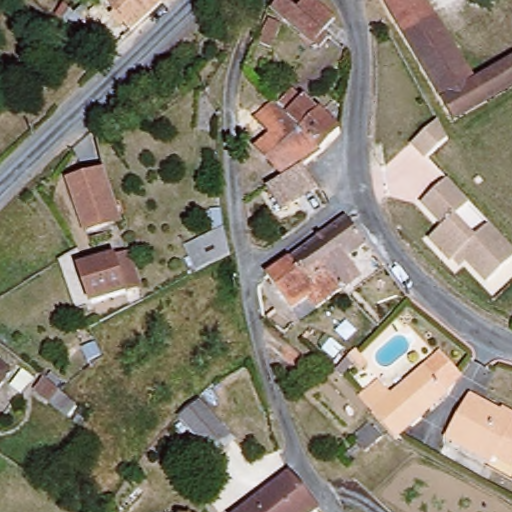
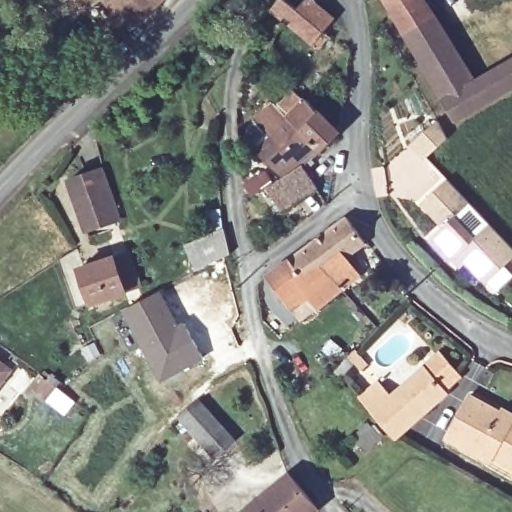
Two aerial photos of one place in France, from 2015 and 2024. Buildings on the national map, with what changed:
unchanged [(105,1),(106,0),(162,0),(130,29),(125,24),(121,27),(110,16),(115,12),(105,1)]
unchanged [(480,81),(502,69),(512,63),(512,90),(459,120),(447,101),(410,35),(397,14),(389,0),(429,0),(480,81)]
unchanged [(319,49),(277,14),(287,1),(302,14),(313,1),(339,25),(329,37),(335,41),(324,54),(319,49)]
unchanged [(89,12),(71,29),(56,15),(64,5),(74,14),(81,5),(89,12)]
unchanged [(286,30),(275,53),(264,49),(275,25),(286,30)]
unchanged [(345,132),(345,133),(344,133),(328,150),(326,152),(283,107),(300,90),(310,100),(311,99),(323,112),(324,112),(345,132)]
unchanged [(326,152),(308,166),(307,165),(289,175),(262,149),(277,135),(260,119),(278,102),(283,107),(326,152)]
unchanged [(449,140),(427,160),(409,142),(436,116),(449,140)]
unchanged [(322,187),(287,210),(271,187),(289,175),(307,165),(308,166),(322,187)]
unchanged [(100,170),(116,220),(86,231),(68,180),(100,170)]
unchanged [(471,200),(456,212),(476,234),(490,222),(512,246),(512,258),(487,284),(469,265),(455,265),(429,237),(440,225),(420,202),(447,177),(471,200)]
unchanged [(371,244),(351,259),(365,275),(347,288),(334,271),(315,283),(296,258),(351,217),(371,244)]
unchanged [(230,254),(209,263),(203,247),(214,242),(212,234),(224,229),(230,254)]
unchanged [(82,279),(79,268),(83,266),(114,256),(128,251),(140,287),(126,292),(91,303),(82,279)]
unchanged [(315,283),(334,271),(347,288),(304,320),(297,311),(296,311),(271,275),(296,258),(315,283)]
new [(161,290),(179,322),(184,320),(204,358),(160,383),(120,310),(161,290)]
unchanged [(298,325),(289,333),(269,318),(280,310),(298,325)]
unchanged [(100,355),(88,361),(81,349),(94,343),(100,355)]
unchanged [(400,437),(364,397),(383,381),(397,396),(429,366),(445,353),(464,376),(449,389),(452,392),(400,437)]
unchanged [(0,359),(15,370),(0,390),(0,359)]
unchanged [(51,381),(64,390),(54,401),(38,390),(48,378),(51,381)]
unchanged [(512,419),(512,424),(512,425),(512,462),(496,453),(491,463),(446,438),(469,395),(512,419)]
unchanged [(238,444),(219,460),(182,420),(202,402),(238,444)]
unchanged [(362,441),(365,439),(360,433),(372,423),(377,429),(378,427),(381,425),(389,435),(386,437),(370,451),(362,441)]
unchanged [(243,512),(289,475),(317,507),(311,512),(243,512)]

